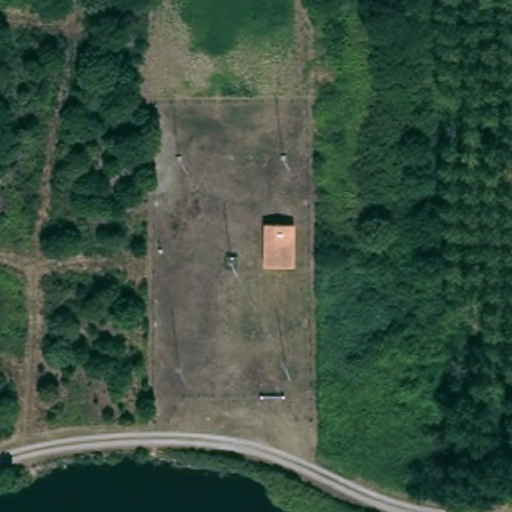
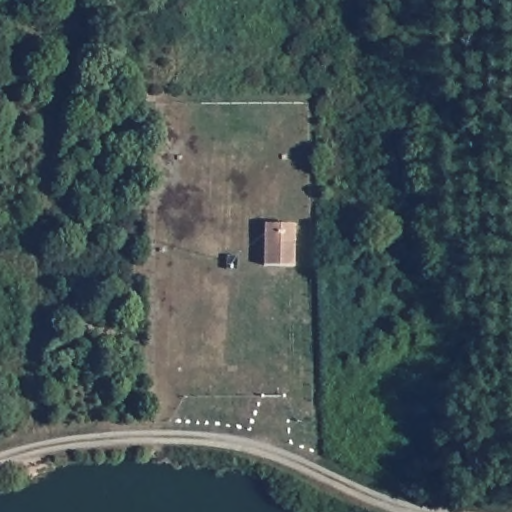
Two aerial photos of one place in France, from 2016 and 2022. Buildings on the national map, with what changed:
unchanged [(300,265),(269,265),(267,224),(298,224),(300,265)]

